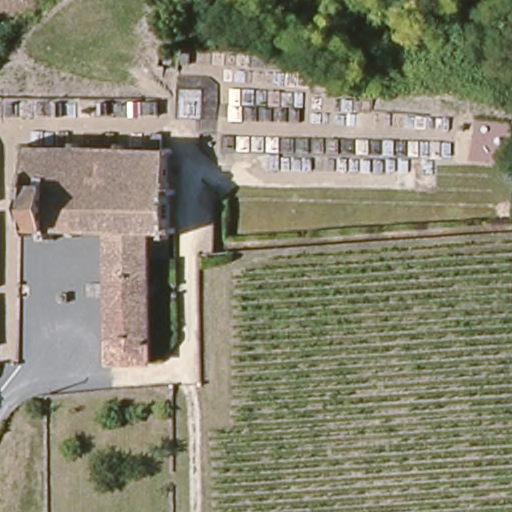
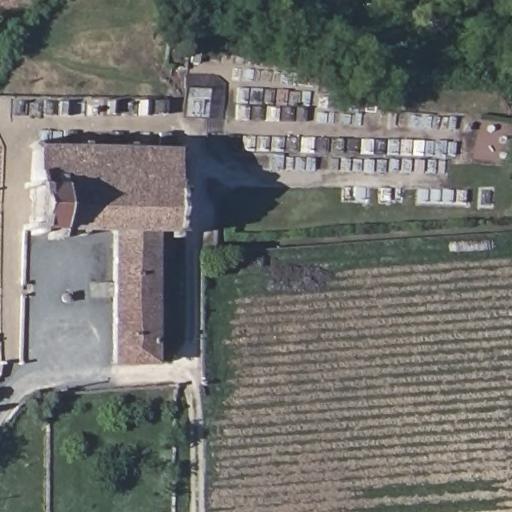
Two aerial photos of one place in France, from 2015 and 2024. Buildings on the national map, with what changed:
unchanged [(26,9),(0,15),(0,0),(39,0),(26,9)]
unchanged [(36,222),(36,191),(30,191),(31,184),(37,184),(37,150),(34,150),(34,141),(40,141),(39,147),(80,148),(81,142),(87,142),(87,147),(127,148),(127,142),(134,142),(134,148),(173,149),(174,231),(119,229),(91,229),(91,235),(82,235),(82,230),(66,230),(66,240),(56,240),(56,229),(44,229),(44,235),(36,235),(36,228),(29,228),(29,221),(36,222)]
unchanged [(174,231),(174,235),(174,258),(159,258),(157,344),(157,351),(157,360),(122,360),(115,360),(119,229),(174,231)]
unchanged [(74,297),(73,308),(65,308),(65,297),(74,297)]
unchanged [(0,384),(0,378),(2,378),(0,384)]

